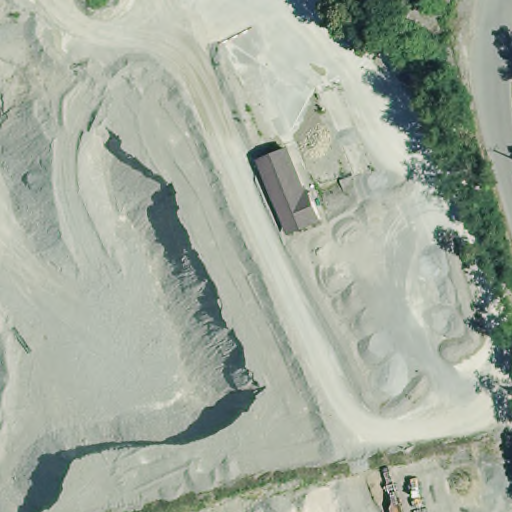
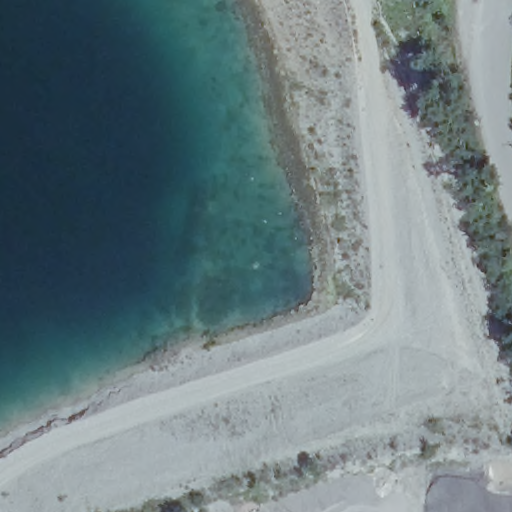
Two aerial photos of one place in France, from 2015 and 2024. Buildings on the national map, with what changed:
demolished [(285,237),(258,158),(292,145),(323,222),(285,237)]

